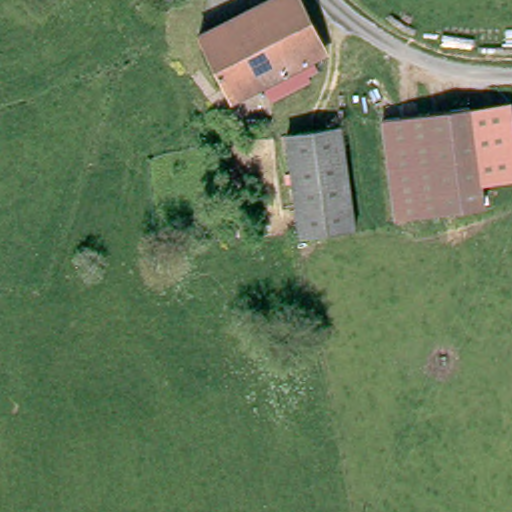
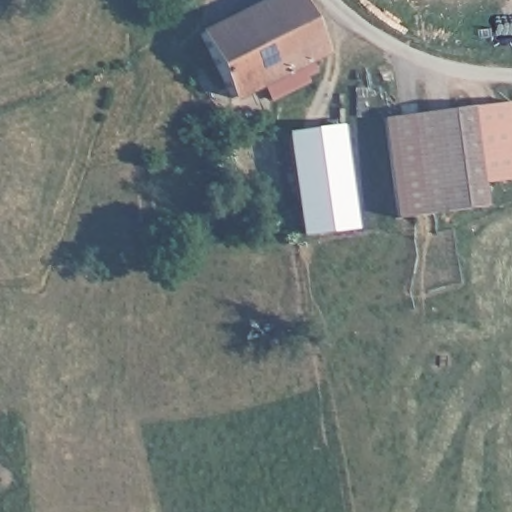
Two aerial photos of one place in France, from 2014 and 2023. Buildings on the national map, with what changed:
unchanged [(323,56),(316,68),(308,72),(309,77),(269,95),(263,79),(231,93),(203,24),(258,0),(308,0),(301,3),(323,56)]
unchanged [(512,178),(478,182),(481,207),(404,216),(392,116),(511,102),(512,114),(512,178)]
unchanged [(252,139),(231,149),(226,139),(224,134),(244,124),(251,136),(252,139)]
unchanged [(347,127),(358,227),(306,232),(299,232),(288,132),(294,132),(347,127)]

